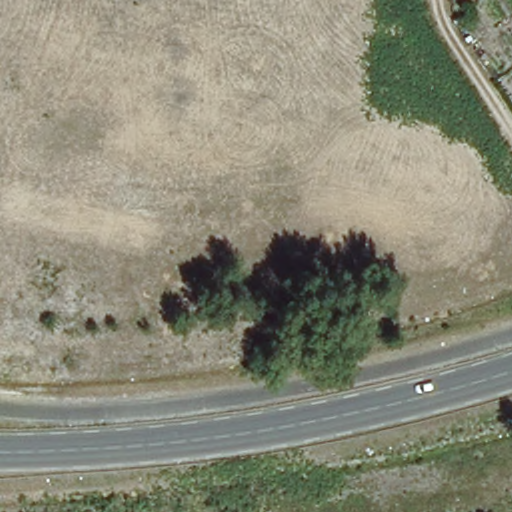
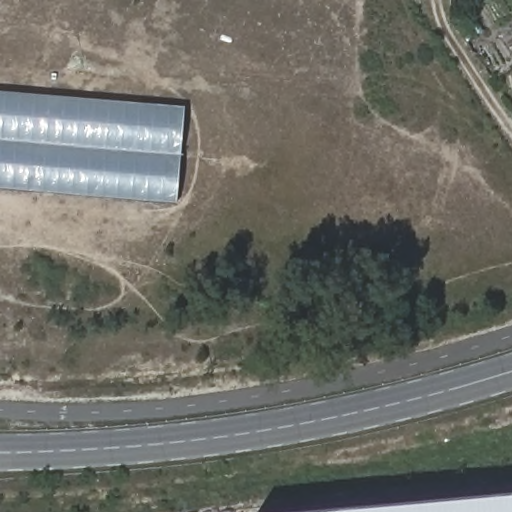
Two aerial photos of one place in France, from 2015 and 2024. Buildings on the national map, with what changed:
new [(187,110),(181,205),(0,190),(0,94),(187,110)]
new [(512,512),(403,512),(512,503),(512,512)]

